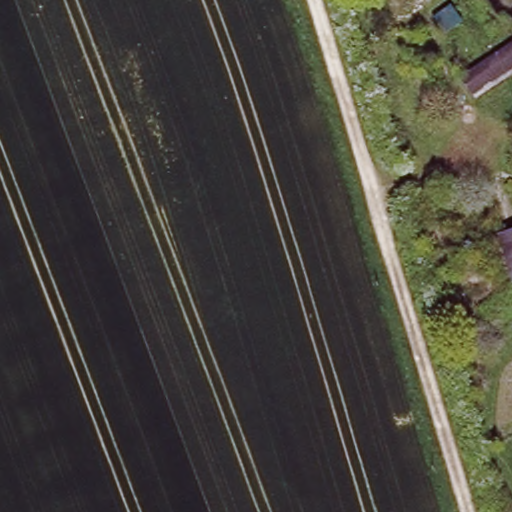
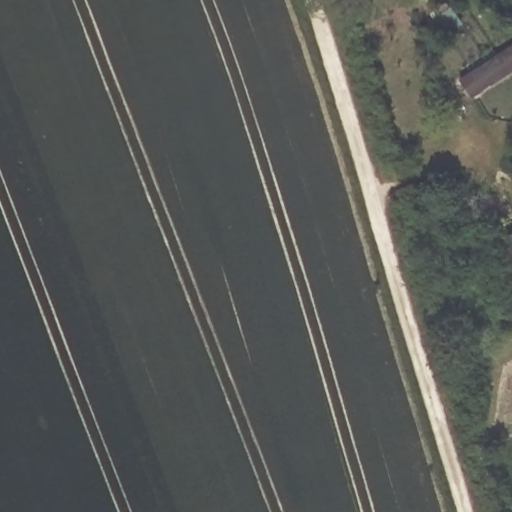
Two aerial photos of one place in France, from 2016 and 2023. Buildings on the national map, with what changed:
unchanged [(459,79),(512,43),(512,70),(470,96),(459,79)]
unchanged [(512,234),(512,284),(510,284),(500,238),(512,234)]

